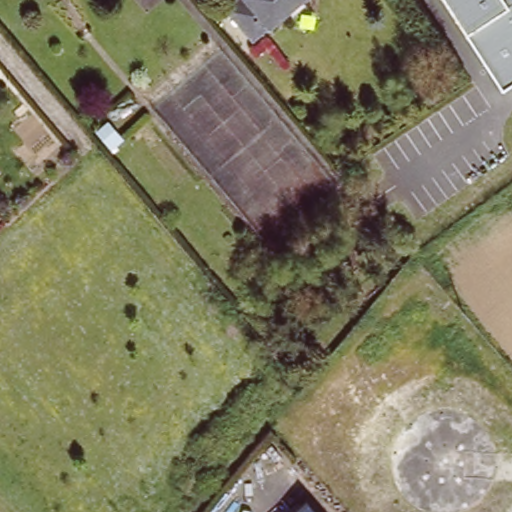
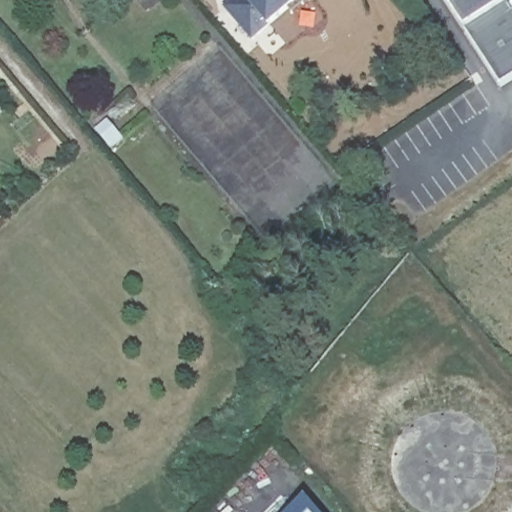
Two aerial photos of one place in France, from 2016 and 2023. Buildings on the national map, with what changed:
unchanged [(247,40),(220,9),(230,0),(245,0),(266,24),(247,40)]
unchanged [(283,10),(266,24),(245,0),(295,0),(299,5),(287,15),(283,10)]
unchanged [(512,22),(500,5),(458,32),(437,0),(512,0),(512,22)]
unchanged [(500,90),(460,31),(500,5),(512,22),(512,82),(500,90)]
unchanged [(112,147),(97,130),(107,122),(122,139),(112,147)]
unchanged [(310,512),(286,512),(300,500),(310,512)]

